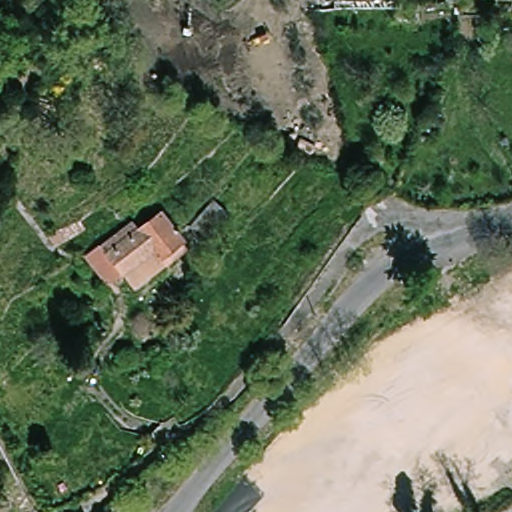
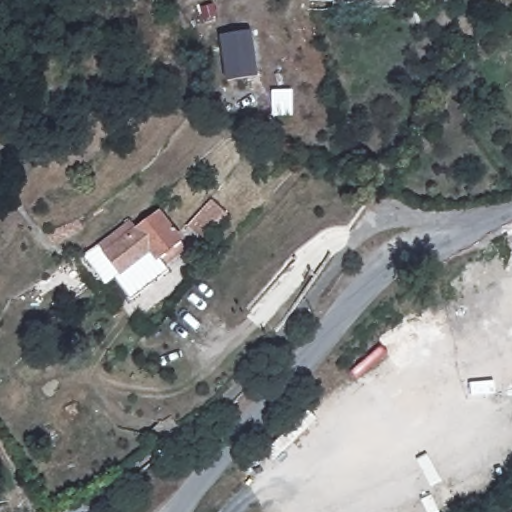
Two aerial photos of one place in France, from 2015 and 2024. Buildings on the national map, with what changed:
new [(251,31),(258,77),(227,82),(220,35),(251,31)]
unchanged [(205,210),(211,204),(227,219),(219,227),(203,245),(187,230),(205,210)]
unchanged [(137,288),(127,275),(125,272),(108,250),(140,227),(164,210),(188,240),(161,261),(166,267),(137,288)]
unchanged [(125,272),(110,285),(87,256),(135,220),(140,227),(108,250),(125,272)]

